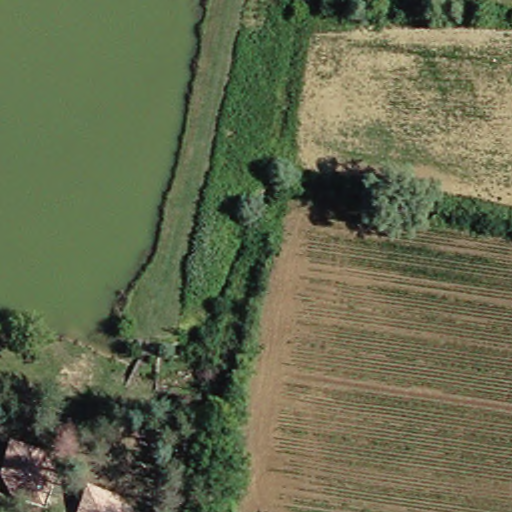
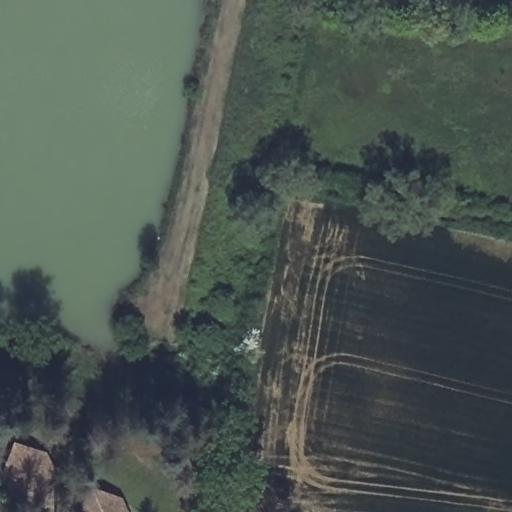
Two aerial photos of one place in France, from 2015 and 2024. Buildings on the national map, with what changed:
unchanged [(45,450),(56,479),(47,506),(14,502),(1,474),(12,440),(45,450)]
unchanged [(128,512),(78,512),(90,485),(119,494),(128,512)]

